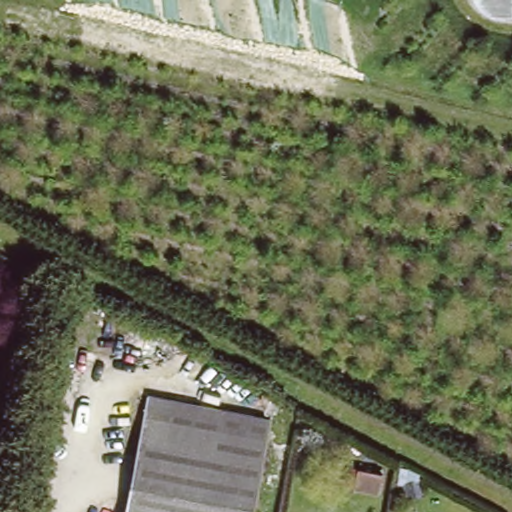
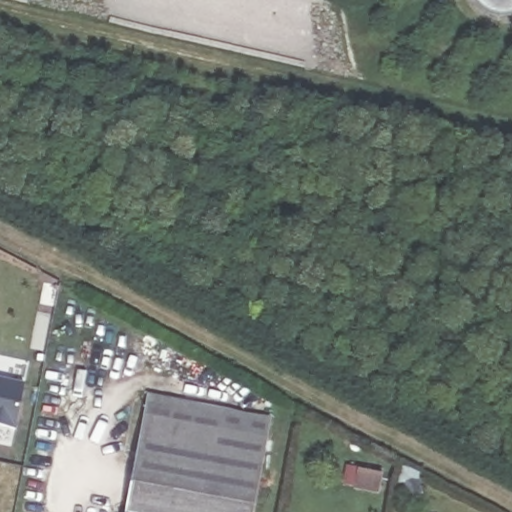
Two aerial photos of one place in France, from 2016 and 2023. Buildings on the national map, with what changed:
unchanged [(500,11),(492,10),(485,5),(480,0),(479,0),(512,0),(512,11),(510,12),(500,11)]
new [(26,382),(18,430),(0,427),(0,377),(26,382)]
unchanged [(154,394),(278,417),(260,512),(131,512),(154,394)]
unchanged [(357,489),(361,463),(386,467),(381,493),(357,489)]

